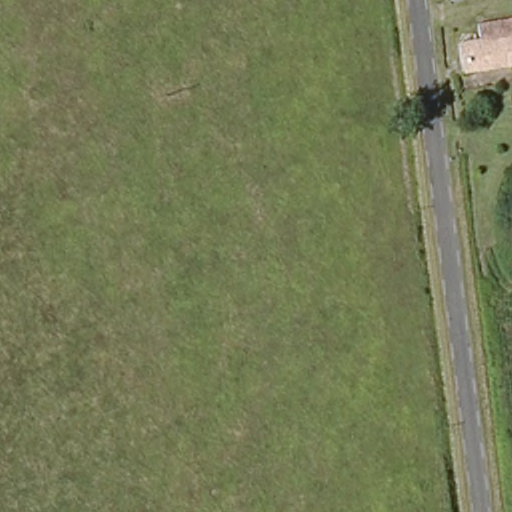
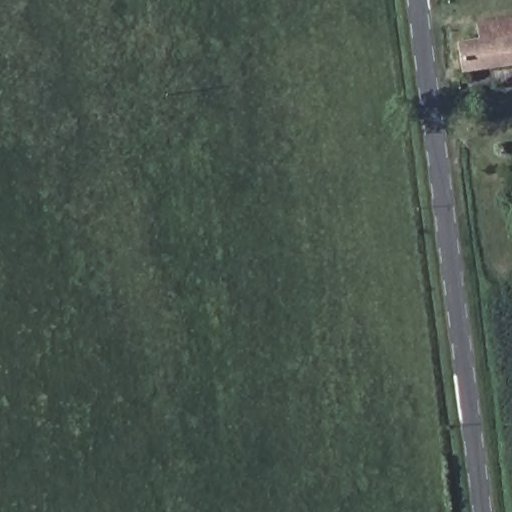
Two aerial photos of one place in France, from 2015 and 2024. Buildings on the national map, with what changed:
unchanged [(464,66),(462,36),(480,35),(480,19),(512,17),(512,63),(464,66)]

